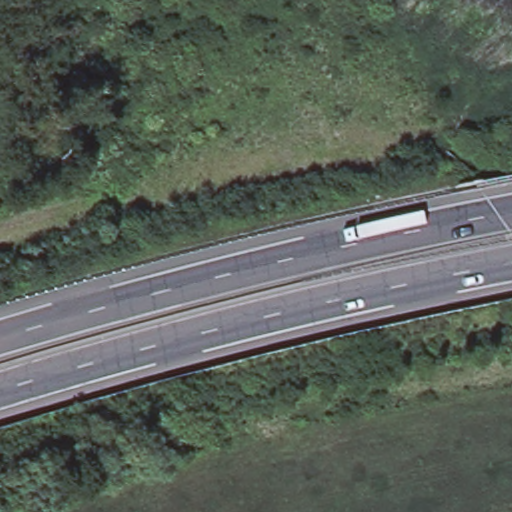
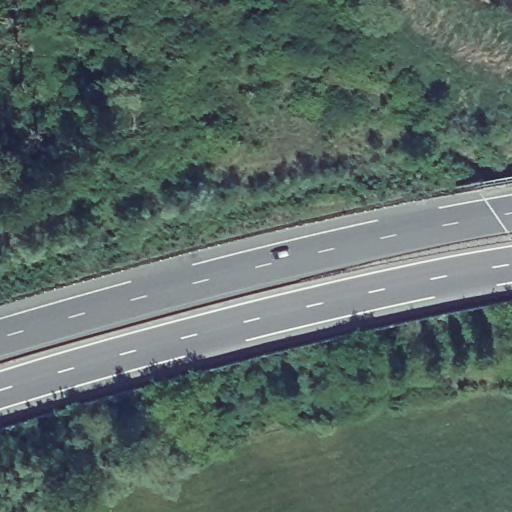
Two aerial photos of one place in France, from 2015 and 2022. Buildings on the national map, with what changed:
[]

